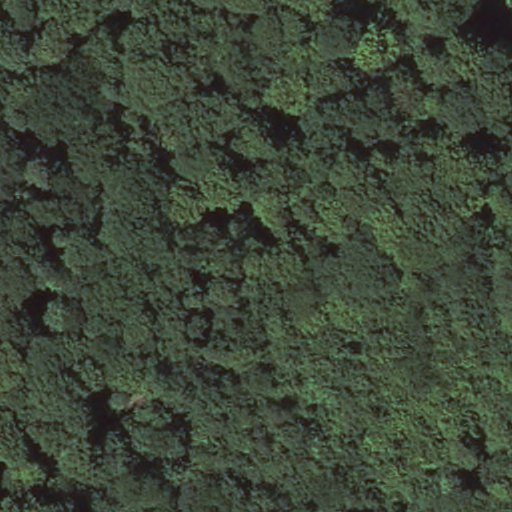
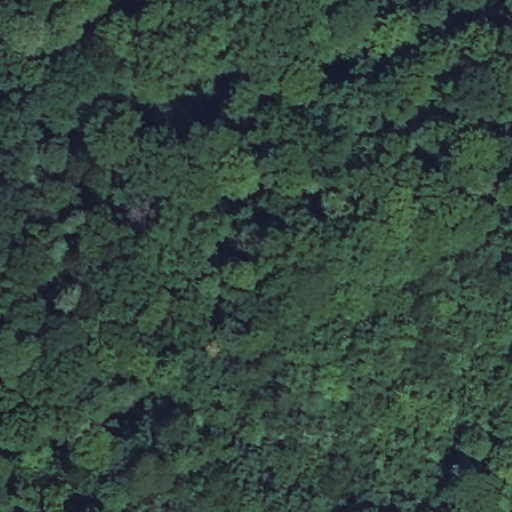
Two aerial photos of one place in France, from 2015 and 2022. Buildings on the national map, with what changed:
[]

